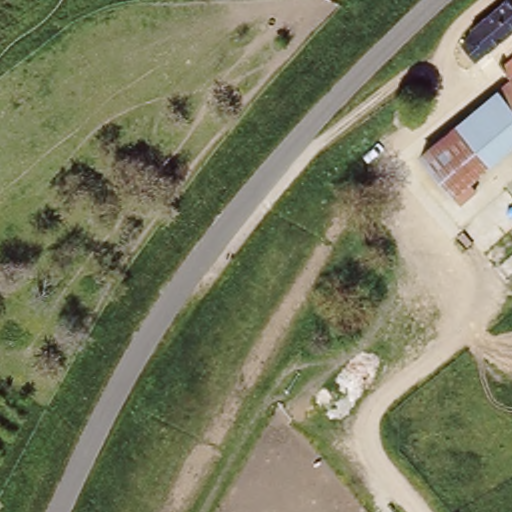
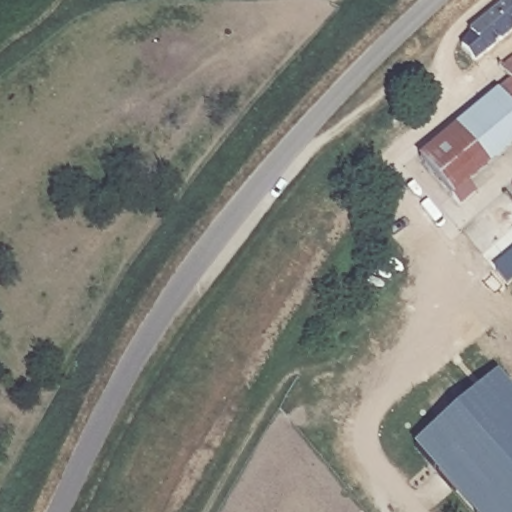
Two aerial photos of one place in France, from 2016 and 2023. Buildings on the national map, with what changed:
unchanged [(467,35),(467,32),(506,0),(512,0),(512,28),(482,53),(482,52),(469,62),(457,48),(467,35)]
unchanged [(477,191),(458,206),(415,156),(510,76),(502,66),(512,58),(512,148),(470,181),(477,191)]
demolished [(393,136),(386,143),(373,131),(382,124),(393,136)]
new [(498,373),(512,388),(512,512),(473,512),(415,445),(498,373)]

